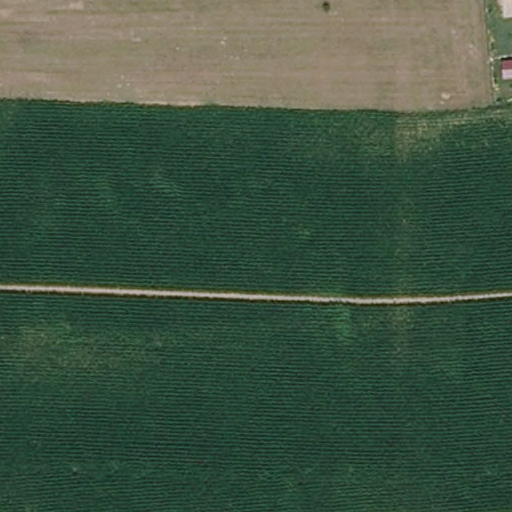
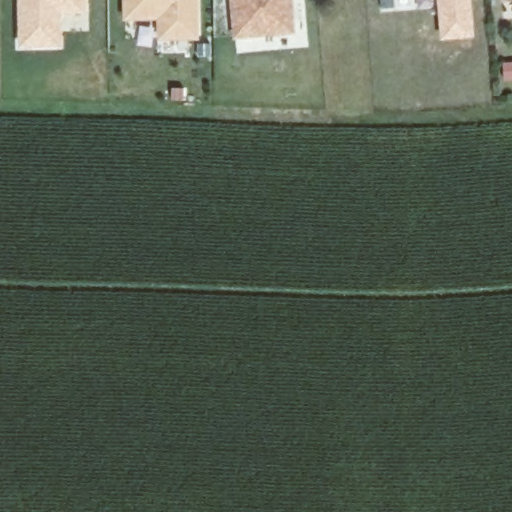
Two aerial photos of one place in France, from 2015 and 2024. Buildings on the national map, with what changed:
new [(86,14),(61,14),(61,48),(18,47),(18,0),(86,0),(86,14)]
new [(199,39),(156,40),(157,19),(124,20),(122,0),(198,0),(199,39)]
unchanged [(282,15),(229,19),(227,0),(280,0),(282,15)]
new [(397,8),(381,9),(380,0),(396,0),(397,8)]
new [(475,38),(440,40),(436,0),(471,0),(475,38)]

